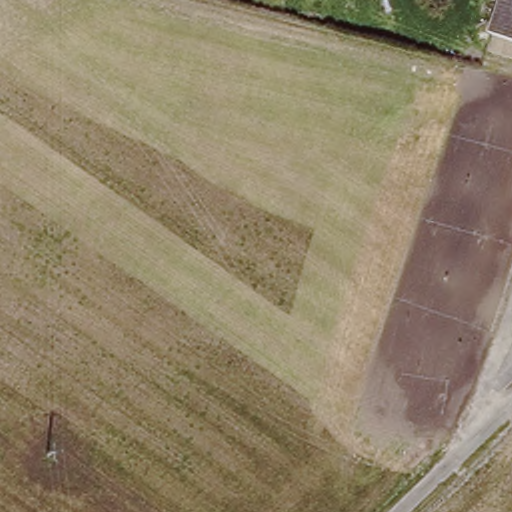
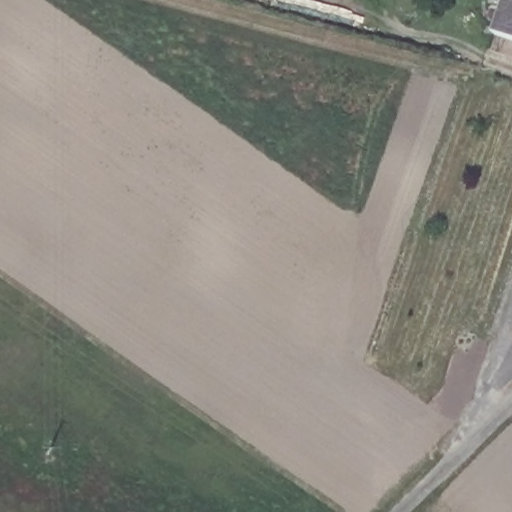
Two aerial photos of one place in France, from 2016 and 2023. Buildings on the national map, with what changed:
unchanged [(503,0),(512,0),(512,39),(492,31),(503,0)]

